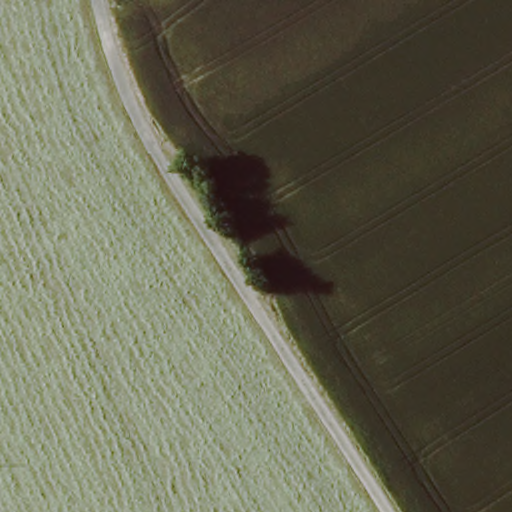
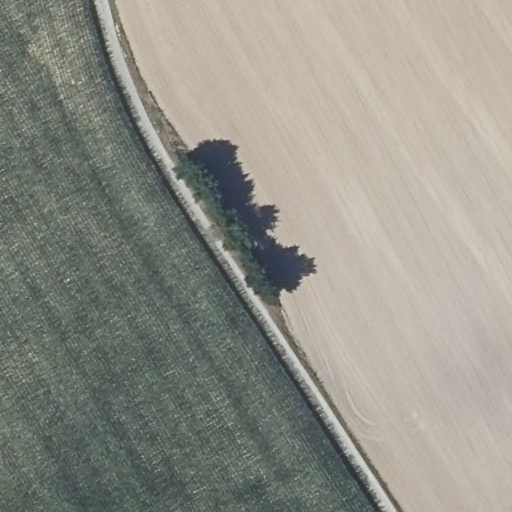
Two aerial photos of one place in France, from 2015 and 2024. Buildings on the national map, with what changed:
[]

